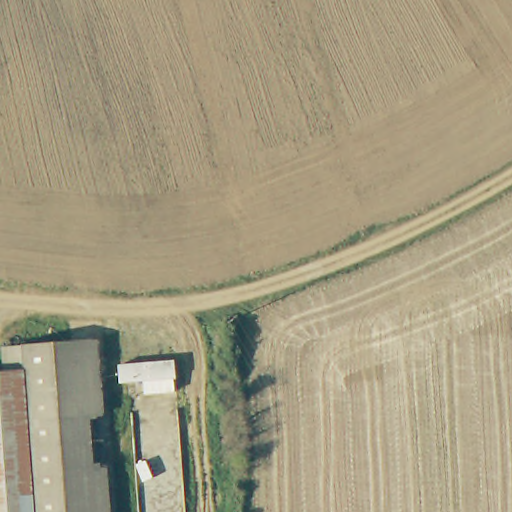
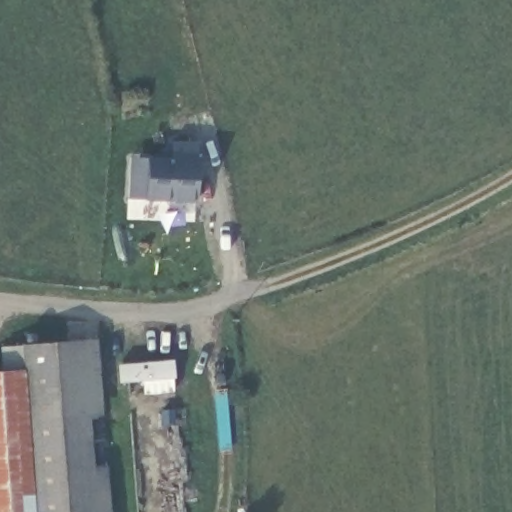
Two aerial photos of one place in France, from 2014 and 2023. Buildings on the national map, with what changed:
new [(129,155),(169,156),(169,141),(196,141),(195,203),(143,199),(126,199),(129,155)]
unchanged [(30,375),(28,353),(97,343),(109,488),(38,502),(30,375)]
unchanged [(38,502),(0,509),(0,377),(30,375),(38,502)]
unchanged [(111,512),(39,512),(38,502),(109,488),(111,512)]
unchanged [(39,512),(0,512),(0,509),(38,502),(39,512)]

